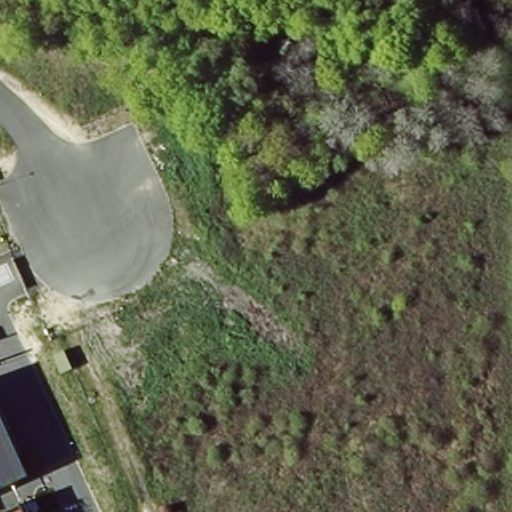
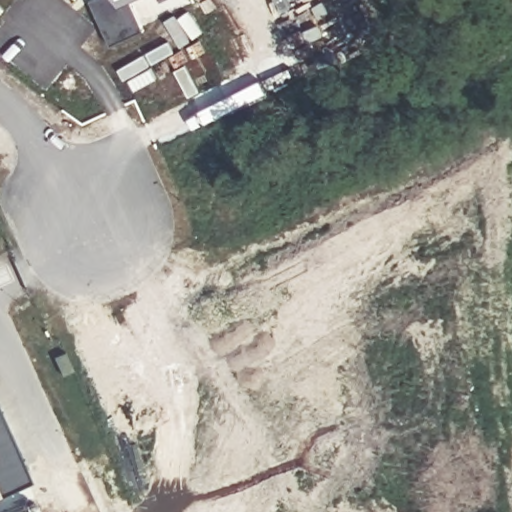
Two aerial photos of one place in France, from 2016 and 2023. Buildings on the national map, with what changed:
new [(107,44),(88,0),(129,0),(141,28),(107,44)]
unchanged [(0,489),(0,410),(32,473),(0,489)]
unchanged [(25,512),(6,512),(22,505),(25,512)]

